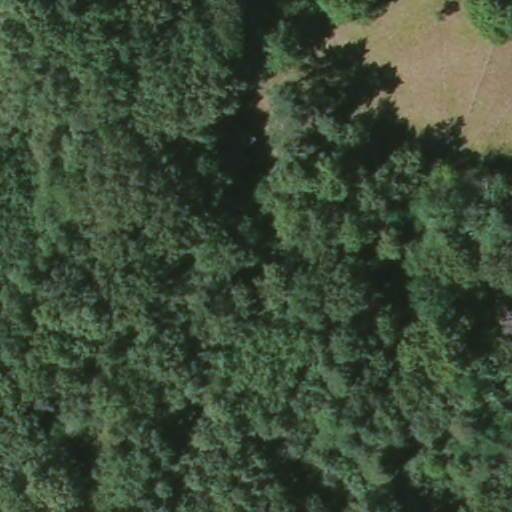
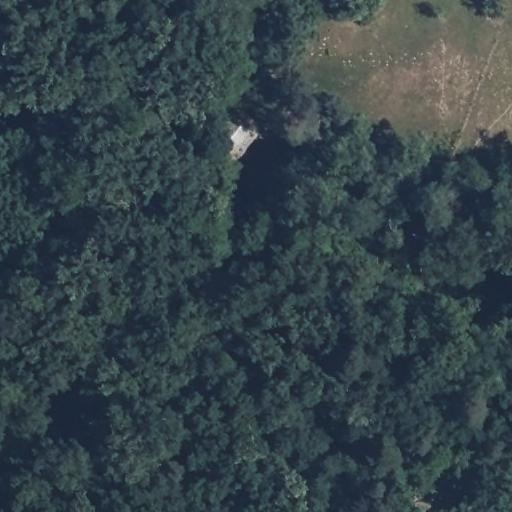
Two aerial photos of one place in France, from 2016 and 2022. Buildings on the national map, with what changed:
unchanged [(236,171),(203,147),(229,112),(260,135),(236,171)]

